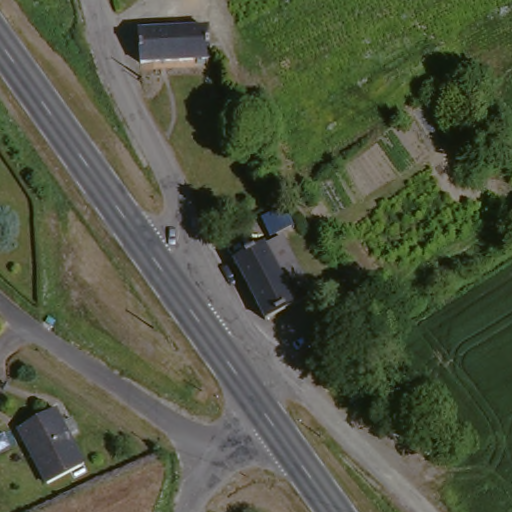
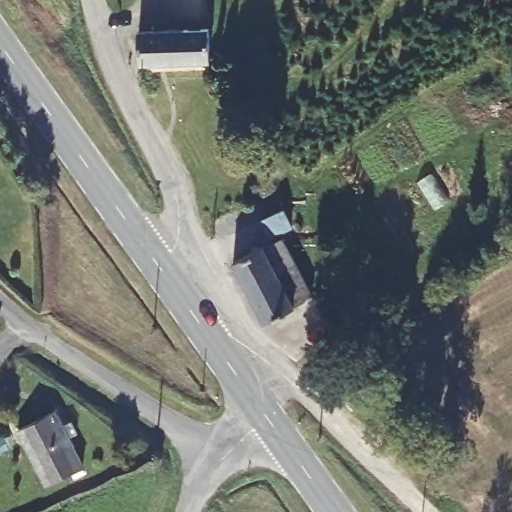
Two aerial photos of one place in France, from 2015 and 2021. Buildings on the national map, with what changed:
unchanged [(144,65),(139,34),(212,30),(213,63),(144,65)]
unchanged [(289,231),(268,242),(257,220),(278,211),(289,231)]
unchanged [(232,268),(279,243),(311,301),(265,325),(232,268)]
unchanged [(82,473),(50,489),(22,432),(54,417),(82,473)]

